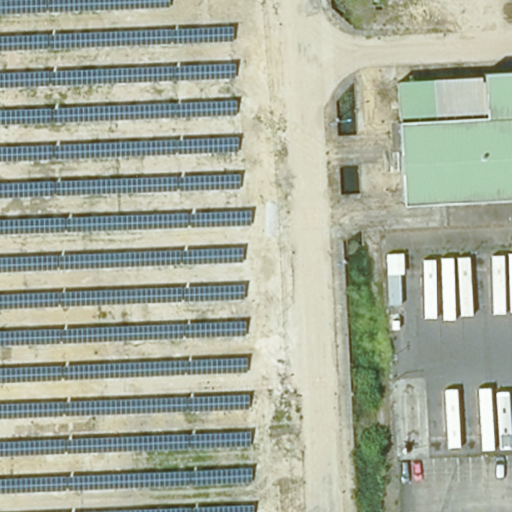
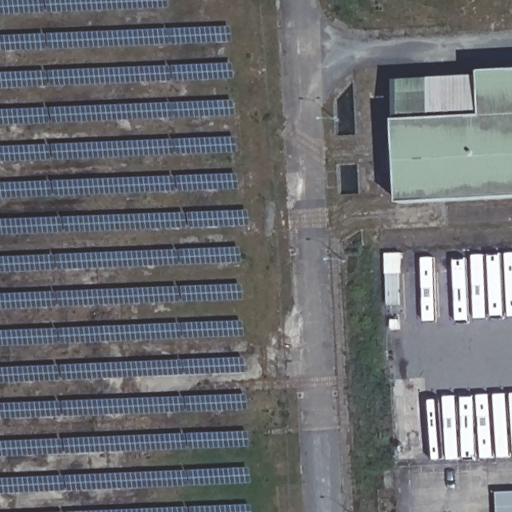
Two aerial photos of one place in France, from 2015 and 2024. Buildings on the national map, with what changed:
unchanged [(402,208),(396,86),(512,76),(512,202),(402,208)]
new [(498,512),(498,492),(512,492),(512,512),(498,512)]

